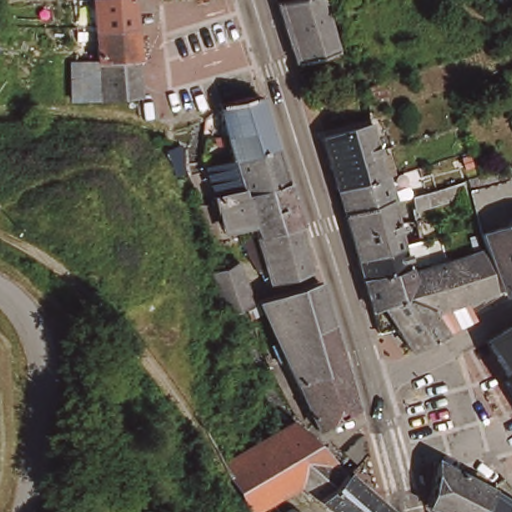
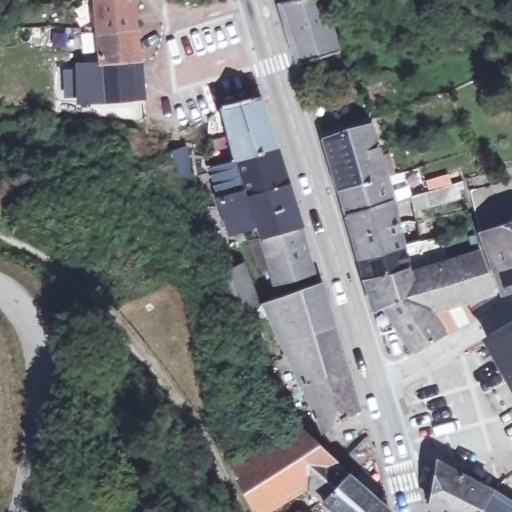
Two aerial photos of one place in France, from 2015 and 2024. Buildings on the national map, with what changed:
unchanged [(99,0),(132,0),(136,25),(100,29),(99,0)]
unchanged [(281,5),(301,0),(304,0),(324,0),(339,53),(299,65),(281,5)]
unchanged [(136,25),(142,60),(102,62),(100,29),(136,25)]
unchanged [(104,97),(83,99),(82,64),(102,62),(142,60),(144,76),(147,97),(104,100),(104,97)]
unchanged [(240,163),(231,131),(227,117),(226,112),(267,100),(283,151),(240,163)]
unchanged [(318,133),(370,116),(385,169),(334,186),(318,133)]
unchanged [(176,177),(168,152),(170,152),(184,148),(188,173),(176,177)]
unchanged [(228,206),(223,208),(221,202),(226,200),(217,170),(240,163),(283,151),(294,186),(227,203),(228,206)]
unchanged [(462,181),(456,182),(458,191),(414,204),(410,190),(407,191),(404,183),(390,187),(392,195),(341,211),(334,186),(385,169),(416,160),(424,186),(461,175),(462,181)]
unchanged [(294,186),(306,229),(303,230),(261,242),(259,238),(256,227),(237,231),(231,213),(224,214),(223,208),(228,206),(227,203),(294,186)]
unchanged [(392,195),(399,218),(348,233),(341,211),(392,195)]
unchanged [(0,199),(5,201),(1,212),(0,212),(0,199)]
unchanged [(512,214),(512,278),(489,284),(478,246),(470,224),(512,214)]
unchanged [(399,218),(404,240),(354,255),(348,233),(399,218)]
unchanged [(261,242),(303,230),(318,275),(277,288),(266,256),(259,258),(251,240),(259,238),(261,242)]
unchanged [(404,240),(413,267),(363,284),(354,255),(404,240)]
unchanged [(447,256),(478,246),(489,284),(460,294),(447,256)]
unchanged [(402,342),(392,320),(375,327),(369,306),(419,292),(413,267),(447,256),(460,294),(466,311),(444,321),(440,323),(402,342)]
unchanged [(246,267),(258,298),(263,311),(267,321),(259,324),(258,319),(253,310),(239,314),(231,316),(228,317),(226,316),(213,278),(226,274),(243,268),(246,267)]
unchanged [(413,267),(419,292),(369,306),(363,284),(413,267)]
unchanged [(284,354),(283,351),(279,352),(273,336),(279,334),(269,304),(287,295),(301,288),(324,285),(334,321),(284,354)]
unchanged [(334,321),(351,375),(308,392),(291,355),(285,357),(284,354),(334,321)]
unchanged [(487,350),(512,335),(512,392),(487,350)]
unchanged [(351,375),(363,413),(329,433),(308,392),(351,375)]
unchanged [(243,498),(228,471),(236,465),(233,460),(231,455),(242,448),(244,446),(249,454),(264,444),(267,442),(269,443),(271,444),(284,435),(295,428),(303,435),(338,468),(347,477),(324,502),(321,505),(304,492),(281,507),(284,512),(251,512),(248,508),(243,498)]
unchanged [(449,512),(431,502),(438,460),(492,490),(478,512),(449,512)]
unchanged [(347,477),(354,483),(386,512),(331,512),(321,505),(324,502),(347,477)]
unchanged [(512,503),(512,512),(478,512),(492,490),(512,503)]

